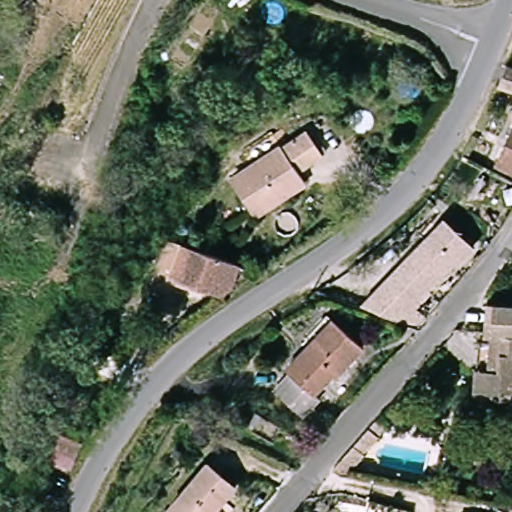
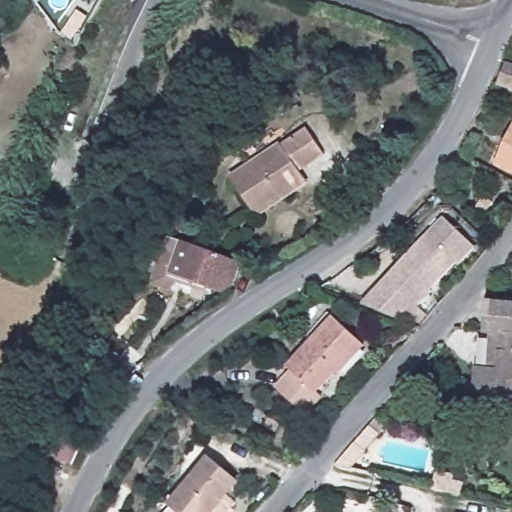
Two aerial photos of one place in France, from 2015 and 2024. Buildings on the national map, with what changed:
unchanged [(496,82),(504,63),(512,66),(512,89),(496,82)]
unchanged [(260,218),(236,181),(310,131),(326,155),(314,164),(301,172),(309,184),(260,218)]
unchanged [(501,164),(512,138),(512,169),(501,164)]
unchanged [(414,332),(375,316),(393,297),(386,290),(401,273),(395,267),(439,223),(470,250),(457,264),(453,261),(410,308),(424,320),(414,332)]
unchanged [(168,281),(181,246),(238,270),(228,296),(218,300),(168,281)]
unchanged [(486,307),(512,309),(512,340),(502,340),(483,339),(486,307)]
unchanged [(343,372),(339,369),(320,390),(324,395),(306,415),(278,391),(295,372),(291,369),(336,317),(368,343),(343,372)]
unchanged [(512,340),(512,398),(483,398),(484,373),(500,373),(502,340),(512,340)]
unchanged [(70,471),(51,461),(63,437),(83,445),(70,471)]
unchanged [(178,512),(171,506),(207,461),(235,482),(212,512),(178,512)]

